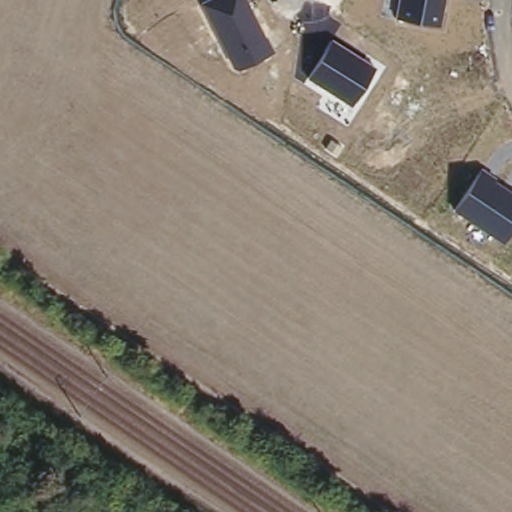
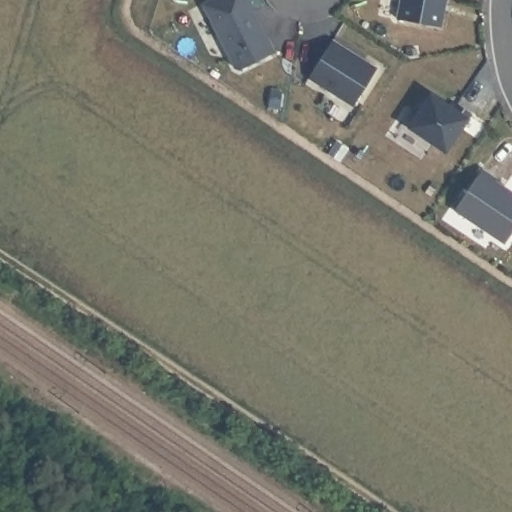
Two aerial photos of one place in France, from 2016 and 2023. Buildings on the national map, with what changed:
unchanged [(236,73),(202,4),(209,0),(249,0),(274,51),(236,73)]
unchanged [(395,19),(398,0),(447,0),(442,28),(395,19)]
unchanged [(379,66),(354,108),(310,78),(336,38),(379,66)]
new [(472,110),(447,146),(407,121),(430,84),(472,110)]
unchanged [(512,187),(512,232),(505,243),(454,208),(483,166),(512,187)]

